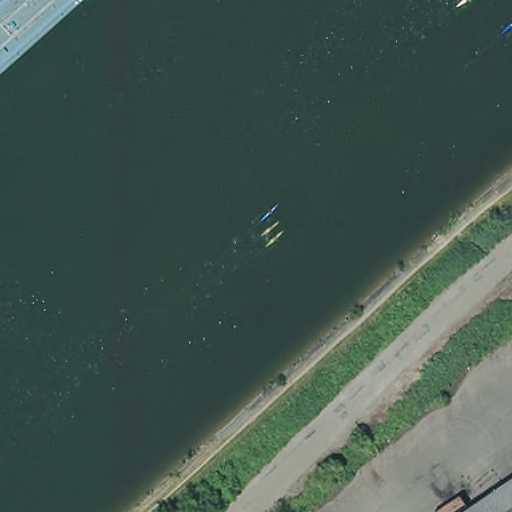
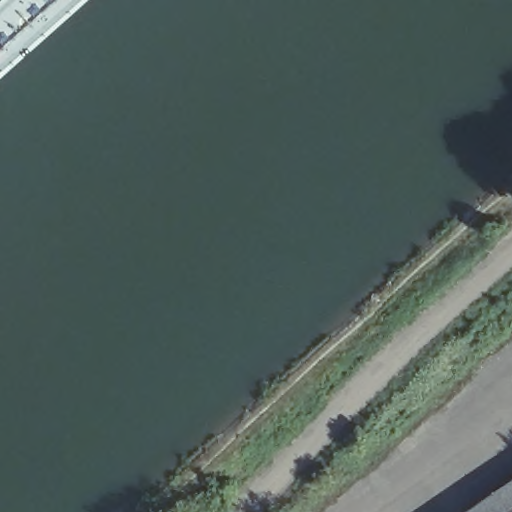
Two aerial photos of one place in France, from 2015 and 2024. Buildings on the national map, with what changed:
unchanged [(512,470),(512,512),(449,512),(512,470)]

